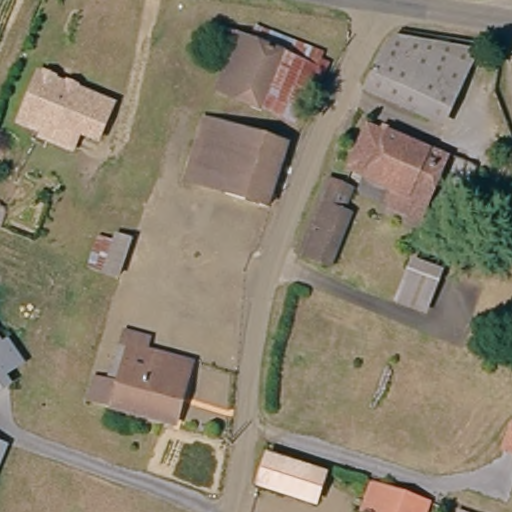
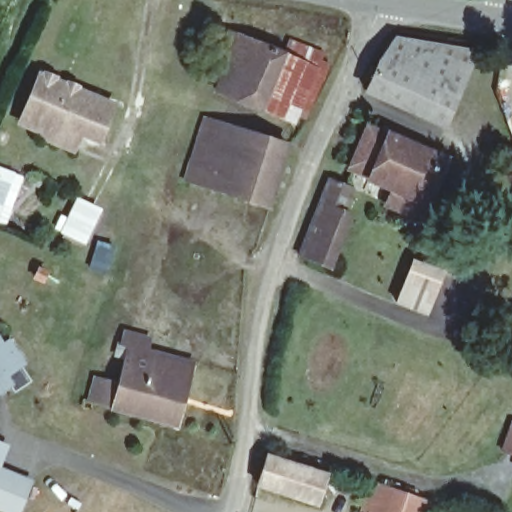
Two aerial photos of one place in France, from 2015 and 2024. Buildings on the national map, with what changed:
unchanged [(228,91),(239,59),(225,54),(231,36),(291,58),(273,108),(228,91)]
unchanged [(444,93),(378,65),(382,58),(394,51),(397,39),(409,44),(424,37),(480,46),(458,98),(444,93)]
unchanged [(273,108),(291,58),(326,71),(308,121),(273,108)]
unchanged [(456,103),(441,96),(430,123),(367,97),(378,65),(444,93),(458,98),(456,103)]
unchanged [(71,144),(42,131),(45,125),(23,116),(40,75),(44,76),(46,75),(52,78),(53,80),(67,85),(74,88),(93,96),(112,104),(99,136),(82,129),(75,145),(71,144)]
unchanged [(195,185),(186,182),(191,166),(205,123),(215,126),(291,151),(272,210),(195,185)]
unchanged [(428,205),(390,191),(392,183),(371,174),(387,133),(448,159),(428,205)]
new [(5,227),(0,224),(0,171),(23,181),(5,227)]
unchanged [(330,178),(351,193),(343,216),(346,218),(328,269),(303,259),(330,178)]
unchanged [(104,256),(107,247),(116,251),(121,239),(133,244),(127,259),(118,281),(97,274),(104,256)]
unchanged [(407,261),(443,274),(431,306),(427,317),(389,301),(393,290),(407,261)]
unchanged [(9,337),(27,364),(8,377),(13,385),(0,393),(0,338),(2,342),(9,337)]
unchanged [(176,432),(92,404),(100,379),(113,383),(127,342),(137,345),(198,367),(176,432)]
unchanged [(500,451),(511,419),(512,419),(512,455),(500,451)]
unchanged [(0,467),(0,442),(8,446),(0,467)]
unchanged [(315,504),(261,488),(270,457),(325,474),(315,504)]
new [(21,512),(0,512),(0,467),(33,481),(21,512)]
unchanged [(441,512),(366,512),(362,511),(370,482),(381,483),(427,499),(443,505),(441,512)]

